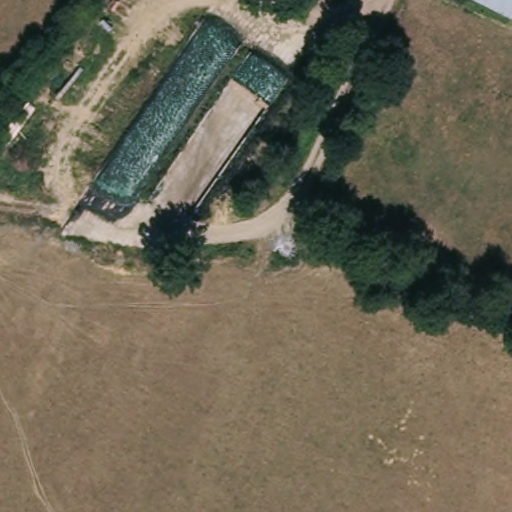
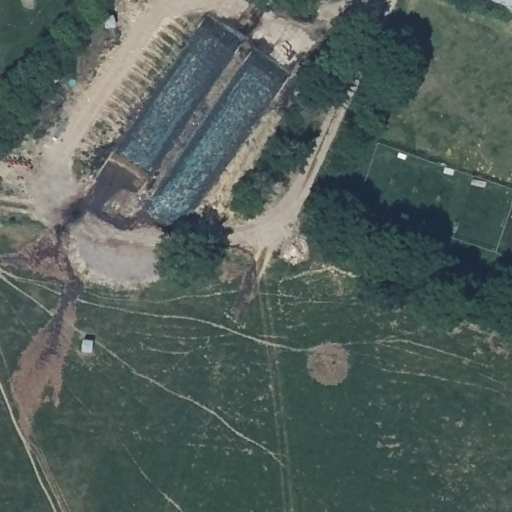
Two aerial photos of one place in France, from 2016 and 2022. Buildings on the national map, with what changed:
unchanged [(490,0),(512,0),(512,13),(490,0)]

